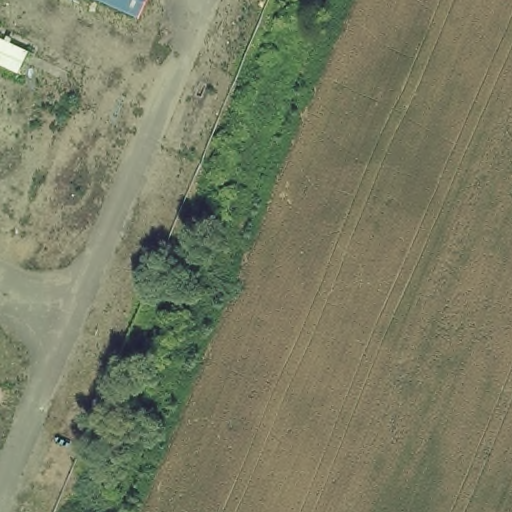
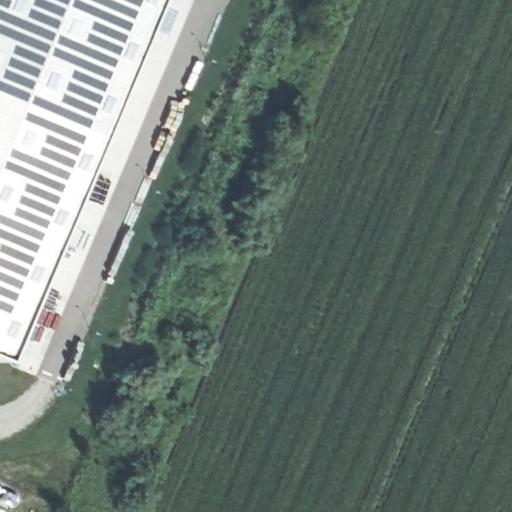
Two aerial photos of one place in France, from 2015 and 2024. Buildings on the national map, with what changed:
new [(0,361),(0,0),(154,0),(2,362),(0,361)]
demolished [(101,0),(139,0),(133,14),(101,0)]

